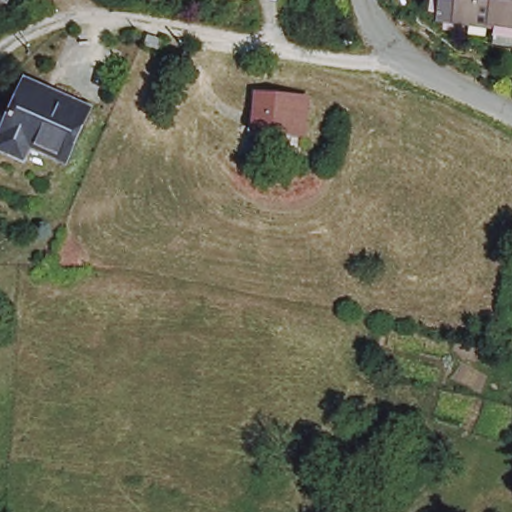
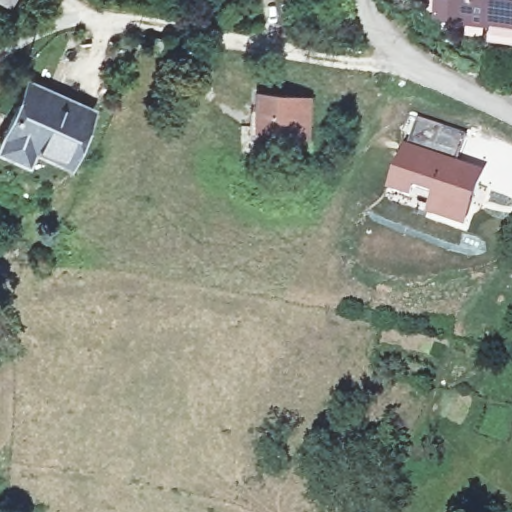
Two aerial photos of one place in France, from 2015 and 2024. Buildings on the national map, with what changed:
unchanged [(5,0),(0,8),(0,0),(5,0)]
unchanged [(512,0),(512,25),(493,23),(492,31),(461,29),(464,6),(455,5),(455,0),(512,0)]
unchanged [(151,52),(136,46),(142,30),(156,37),(151,52)]
unchanged [(34,76),(92,104),(67,157),(33,144),(27,156),(0,144),(0,143),(34,76)]
unchanged [(257,97),(305,102),(302,137),(288,136),(288,127),(254,124),(257,97)]
new [(415,115),(466,132),(457,161),(405,142),(415,115)]
new [(405,142),(457,161),(483,170),(465,229),(428,217),(429,199),(413,193),(411,198),(389,190),(405,142)]

